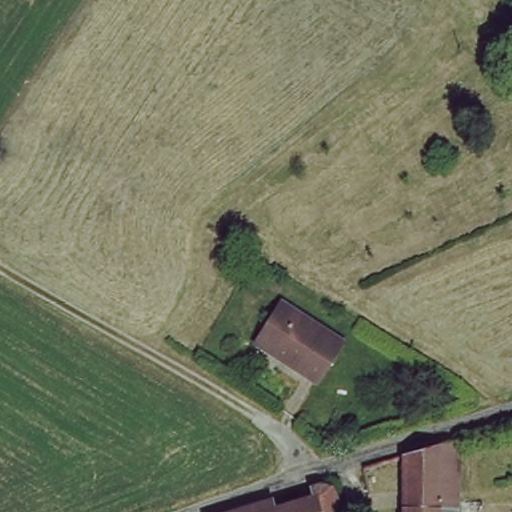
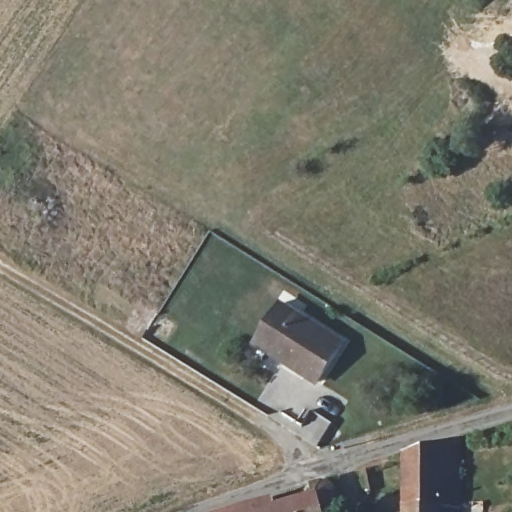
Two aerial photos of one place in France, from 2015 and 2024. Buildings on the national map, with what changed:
unchanged [(343,344),(319,383),(288,362),(290,358),(261,339),(281,304),(343,344)]
unchanged [(402,512),(402,459),(463,441),(460,512),(402,512)]
unchanged [(326,487),(344,481),(358,508),(351,512),(292,512),(330,499),(326,487)]
unchanged [(291,512),(256,512),(286,501),(291,512)]

